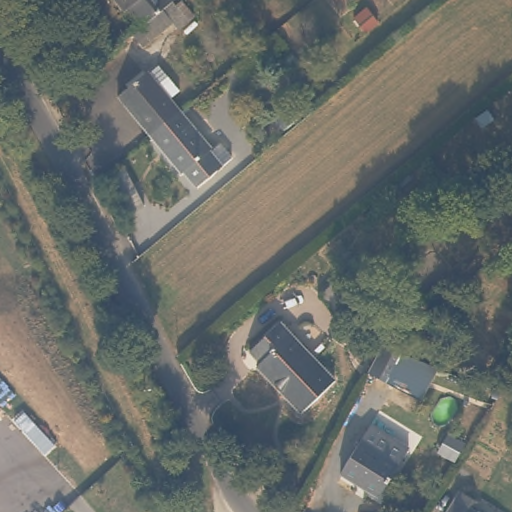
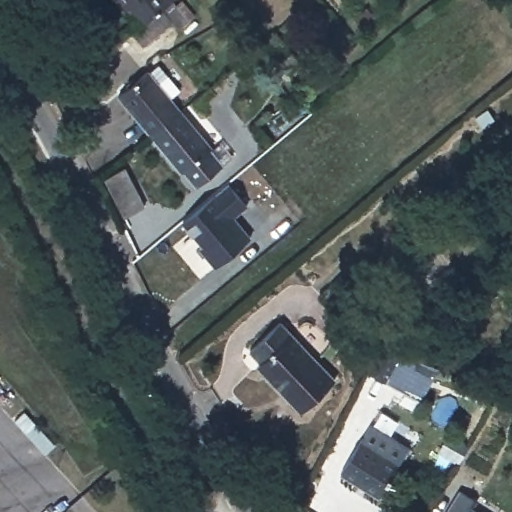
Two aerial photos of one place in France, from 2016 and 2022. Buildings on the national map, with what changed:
unchanged [(127,6),(122,11),(113,0),(173,0),(172,1),(186,17),(175,26),(172,21),(144,45),(134,33),(144,25),(127,6)]
unchanged [(268,49),(241,73),(232,62),(259,38),(268,49)]
unchanged [(281,46),(288,56),(279,63),(272,53),(281,46)]
unchanged [(142,74),(153,65),(177,92),(167,101),(175,111),(147,135),(115,97),(142,74)]
unchanged [(175,111),(209,151),(207,152),(221,168),(197,188),(185,174),(182,176),(147,135),(175,111)]
unchanged [(121,168),(140,204),(123,213),(104,177),(121,168)]
new [(246,205),(235,216),(251,238),(215,267),(199,249),(202,246),(181,221),(215,192),(216,194),(231,182),(246,205)]
demolished [(331,309),(319,299),(345,269),(358,282),(344,299),(333,311),(331,309)]
unchanged [(250,347),(278,319),(293,334),(333,375),(302,407),(260,364),(265,360),(250,347)]
unchanged [(432,366),(421,394),(407,388),(405,394),(362,376),(377,345),(400,355),(418,362),(431,365),(432,366)]
unchanged [(356,437),(397,456),(375,507),(333,487),(356,437)]
unchanged [(476,499),(470,509),(475,512),(447,512),(460,491),(476,499)]

